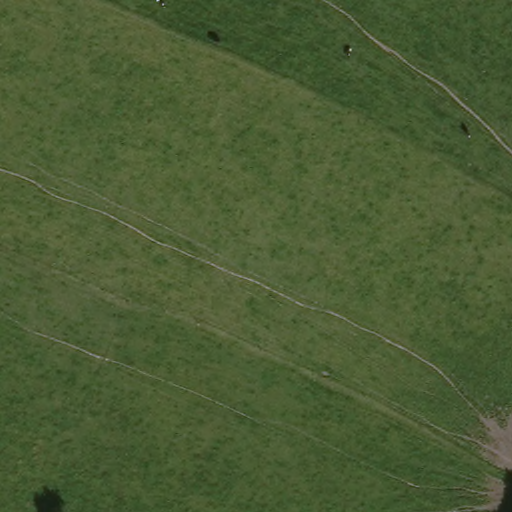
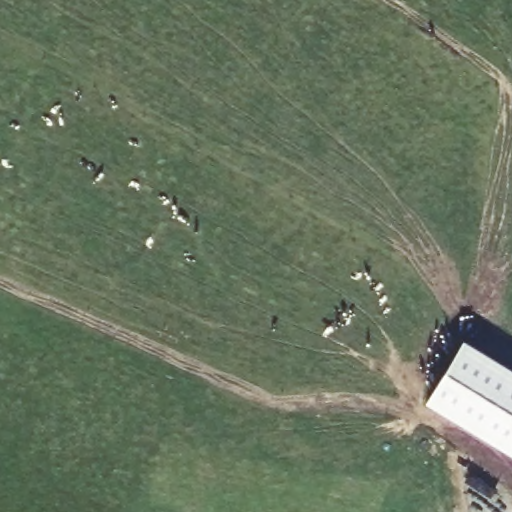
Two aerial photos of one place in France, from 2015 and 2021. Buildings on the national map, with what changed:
new [(462,341),(512,370),(512,456),(425,404),(462,341)]

